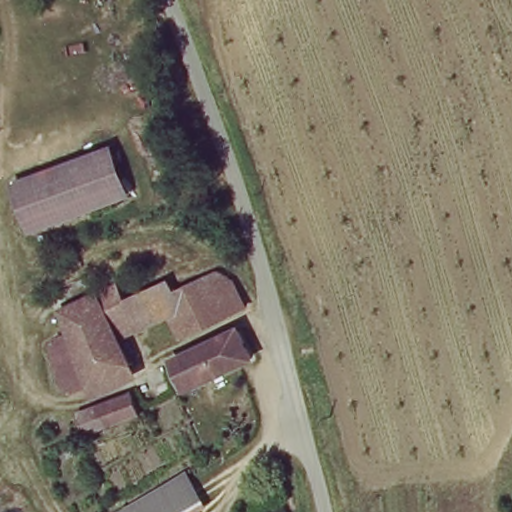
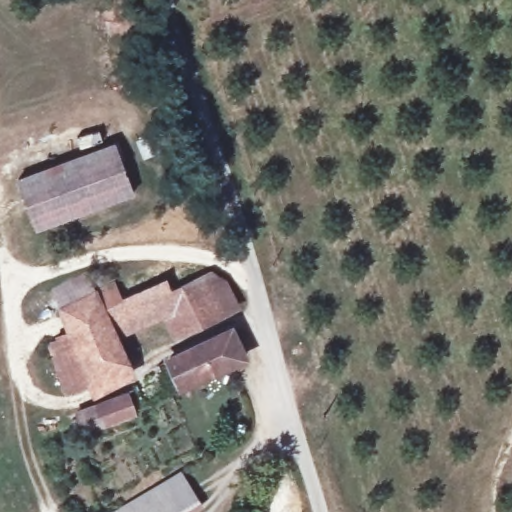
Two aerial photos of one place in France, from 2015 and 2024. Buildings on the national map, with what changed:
unchanged [(102,139),(127,180),(49,228),(24,185),(102,139)]
unchanged [(68,332),(46,284),(99,259),(120,305),(68,332)]
unchanged [(68,332),(120,305),(172,279),(177,289),(209,273),(213,282),(226,277),(240,304),(180,332),(169,312),(117,335),(131,364),(90,382),(72,340),(68,332)]
unchanged [(235,331),(246,355),(184,388),(172,361),(235,331)]
unchanged [(69,393),(50,349),(72,340),(90,382),(69,393)]
unchanged [(133,418),(80,434),(74,409),(126,393),(133,418)]
unchanged [(176,471),(197,496),(175,512),(165,512),(150,492),(157,486),(176,471)]
unchanged [(123,512),(150,492),(165,512),(123,512)]

